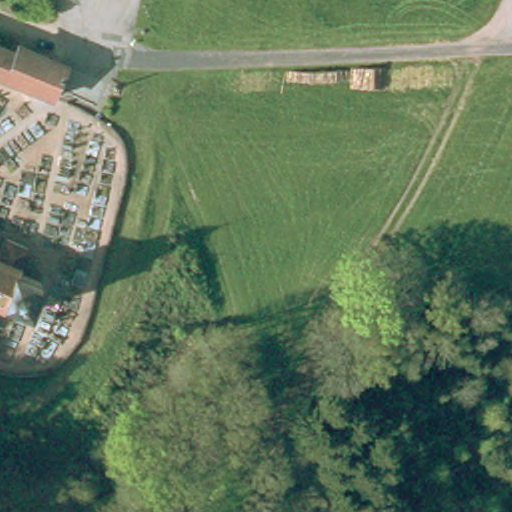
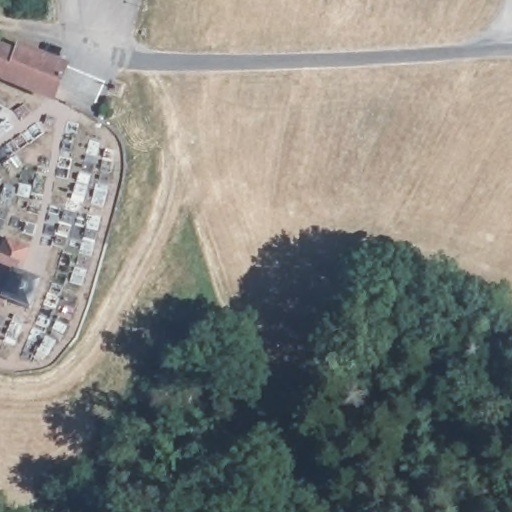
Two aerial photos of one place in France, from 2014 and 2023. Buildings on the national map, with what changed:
unchanged [(33,58),(36,52),(80,71),(67,102),(7,76),(0,73),(0,45),(33,58)]
unchanged [(5,242),(32,254),(22,275),(44,287),(31,311),(18,304),(15,309),(0,303),(0,252),(5,242)]

